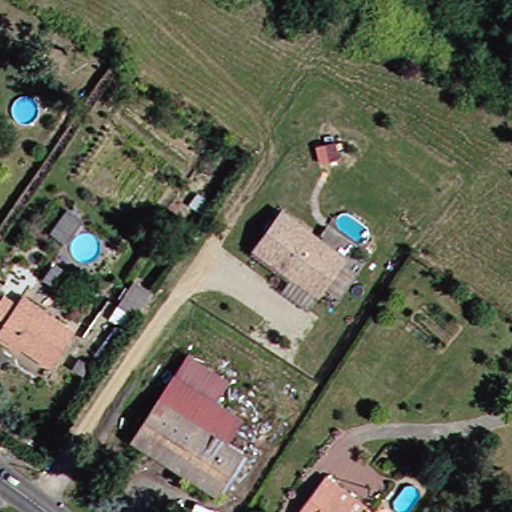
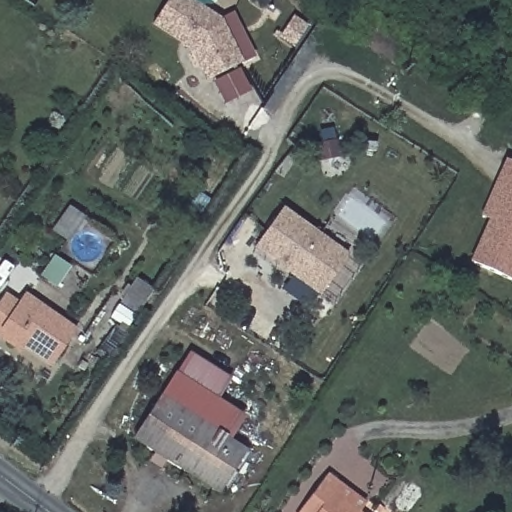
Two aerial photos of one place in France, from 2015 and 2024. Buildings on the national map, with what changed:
new [(245,65),(205,83),(190,50),(153,27),(169,0),(192,0),(222,19),(245,65)]
new [(512,159),(512,190),(507,187),(493,217),(486,214),(512,159)]
new [(493,217),(507,187),(512,190),(512,276),(474,258),(493,217)]
unchanged [(282,208),(348,255),(321,293),(255,247),(282,208)]
unchanged [(137,312),(123,302),(136,282),(150,292),(137,312)]
unchanged [(0,300),(4,294),(18,303),(24,295),(76,331),(51,366),(24,346),(20,351),(0,337),(0,300)]
unchanged [(194,352),(239,380),(225,400),(249,415),(233,441),(166,397),(194,352)]
unchanged [(223,493),(139,439),(162,402),(166,397),(233,441),(250,452),(223,493)]
unchanged [(305,510),(330,475),(343,484),(370,503),(364,512),(303,512),(305,510)]

